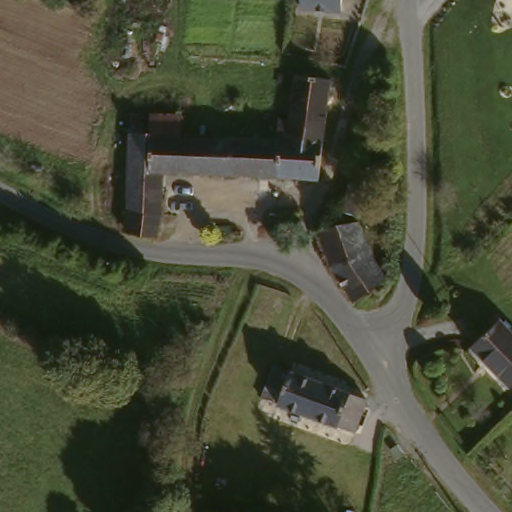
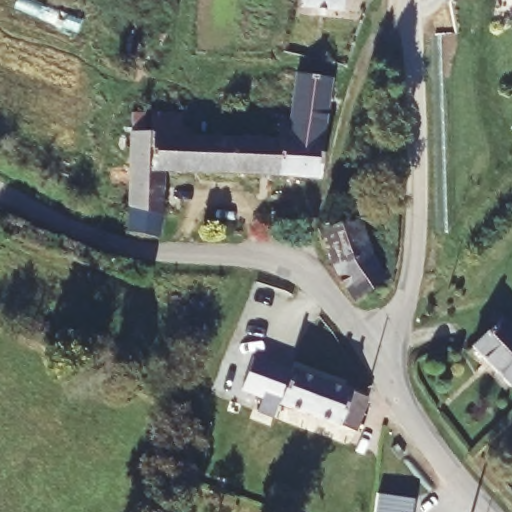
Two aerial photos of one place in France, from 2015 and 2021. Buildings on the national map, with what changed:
unchanged [(353,0),(352,11),(310,8),(311,0),(353,0)]
unchanged [(132,128),(149,129),(150,109),(181,110),(181,130),(293,135),(289,115),(295,69),(329,72),(319,174),(164,168),(159,232),(129,227),(132,128)]
unchanged [(366,184),(360,215),(344,212),(350,181),(366,184)]
unchanged [(355,301),(330,266),(321,238),(318,229),(359,223),(368,247),(388,278),(355,301)]
unchanged [(471,347),(501,320),(512,331),(512,383),(509,386),(471,347)]
unchanged [(287,405),(271,399),(282,366),(299,372),(377,399),(363,432),(287,405)]
new [(376,495),(412,500),(411,512),(373,512),(376,495)]

